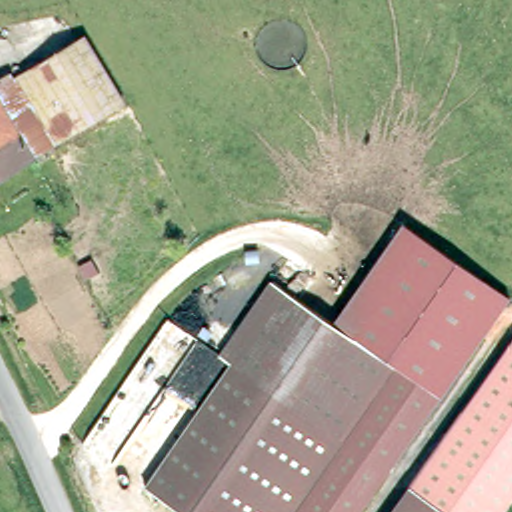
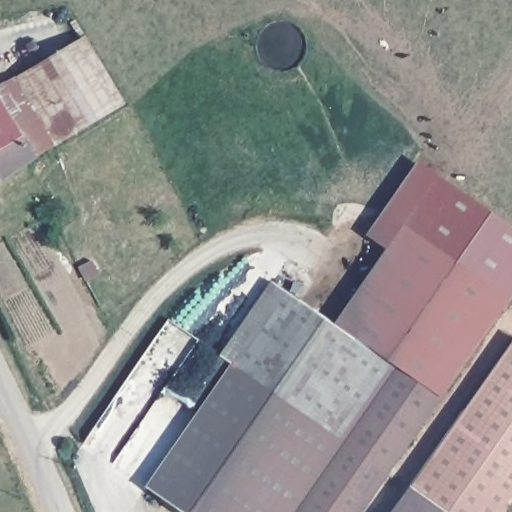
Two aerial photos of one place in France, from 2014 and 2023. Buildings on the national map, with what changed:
unchanged [(85,42),(123,107),(52,149),(12,84),(85,42)]
unchanged [(0,107),(0,91),(12,84),(52,149),(32,160),(0,107)]
unchanged [(0,107),(32,160),(0,179),(0,107)]
new [(365,235),(417,160),(512,227),(512,301),(511,302),(405,229),(390,252),(365,235)]
unchanged [(397,370),(337,328),(405,229),(511,302),(442,401),(397,370)]
unchanged [(232,366),(221,358),(272,284),(337,328),(397,370),(298,512),(179,512),(147,489),(232,366)]
unchanged [(508,512),(441,512),(434,507),(412,491),(512,346),(512,506),(508,512)]
unchanged [(298,512),(397,370),(442,401),(365,512),(298,512)]
unchanged [(398,512),(412,491),(434,507),(441,512),(398,512)]

